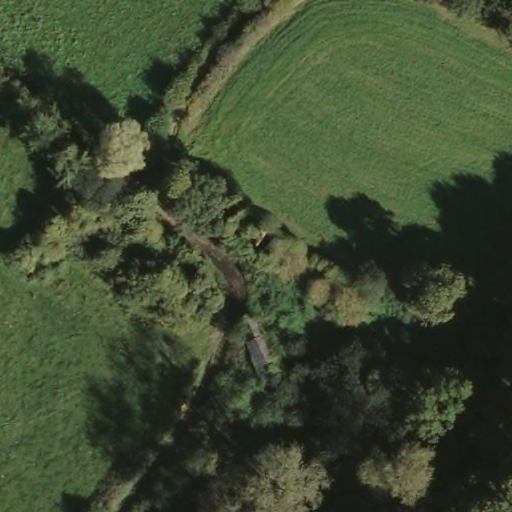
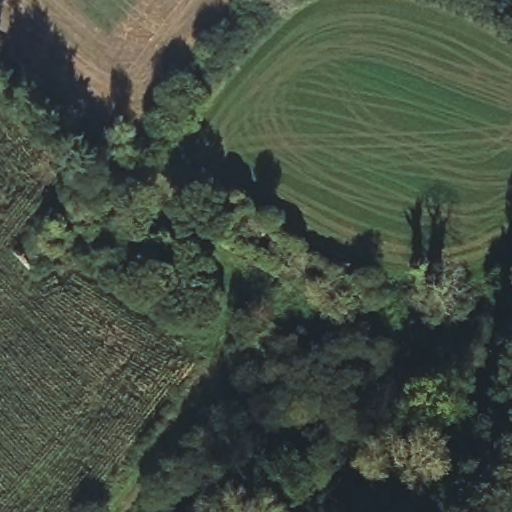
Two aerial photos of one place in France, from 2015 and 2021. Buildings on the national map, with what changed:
unchanged [(216,192),(239,209),(222,232),(218,238),(171,207),(169,206),(190,175),(216,192)]
unchanged [(84,176),(106,196),(74,228),(53,206),(81,179),(84,176)]
unchanged [(238,327),(254,322),(278,382),(263,388),(247,350),(238,327)]

